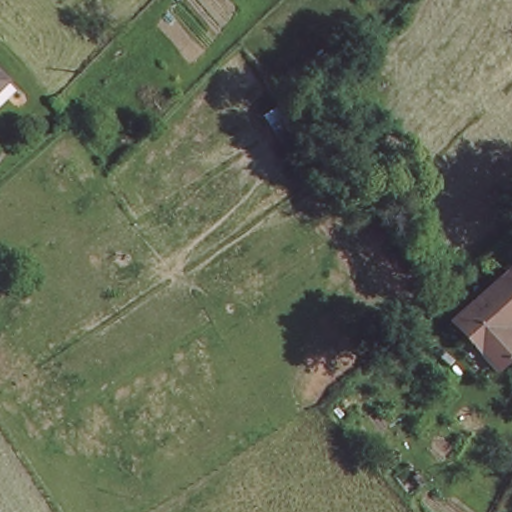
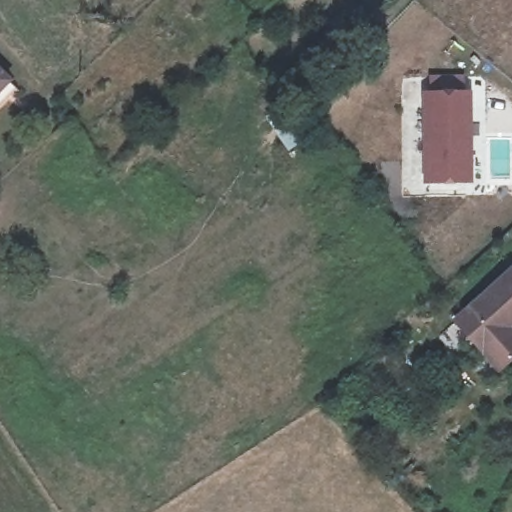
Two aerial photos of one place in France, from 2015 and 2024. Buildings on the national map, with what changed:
unchanged [(11,79),(0,90),(0,68),(11,79)]
new [(468,87),(468,180),(421,180),(420,88),(468,87)]
unchanged [(512,265),(512,316),(509,319),(512,323),(512,353),(500,364),(455,316),(512,265)]

